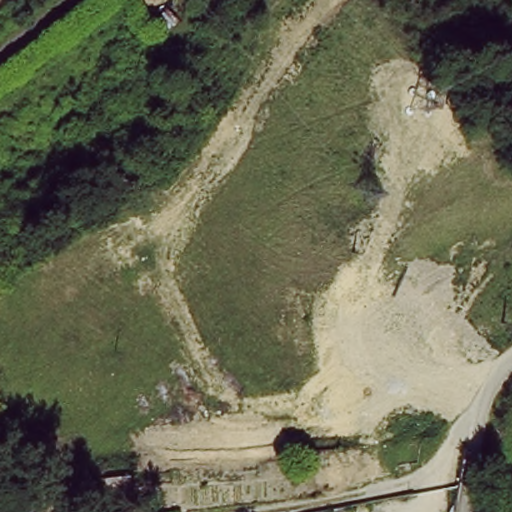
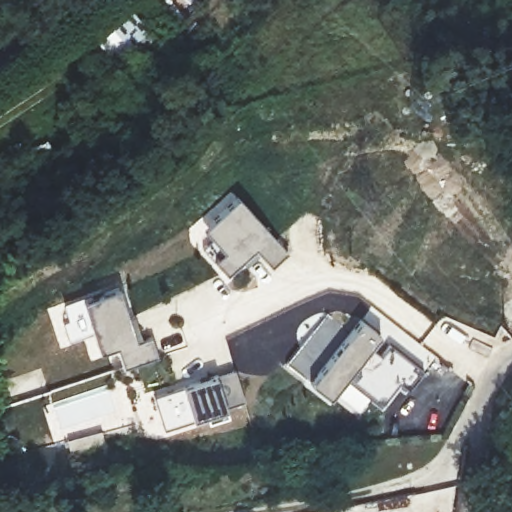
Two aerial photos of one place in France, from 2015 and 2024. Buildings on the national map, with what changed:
new [(158,42),(140,56),(134,47),(115,63),(98,43),(132,14),(150,33),(158,42)]
new [(257,248),(229,273),(217,260),(204,249),(211,234),(205,228),(238,199),(287,253),(272,267),(257,248)]
new [(117,349),(101,354),(92,329),(70,340),(63,320),(70,317),(64,303),(84,301),(118,290),(137,344),(151,339),(159,356),(124,367),(117,349)]
new [(410,391),(398,383),(381,404),(346,377),(329,398),(313,384),(362,322),(380,337),(424,372),(410,391)]
new [(234,372),(245,403),(228,412),(194,421),(167,432),(155,397),(234,372)]

